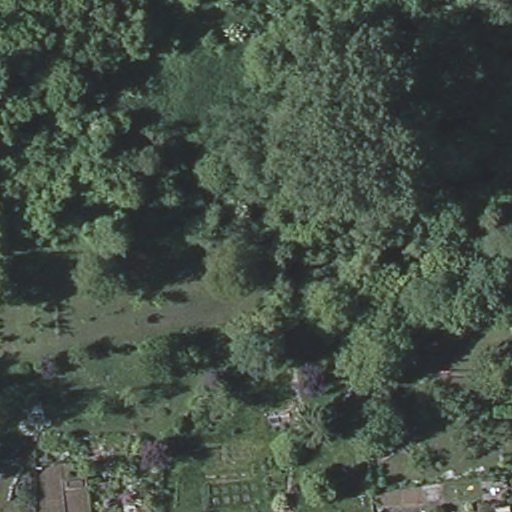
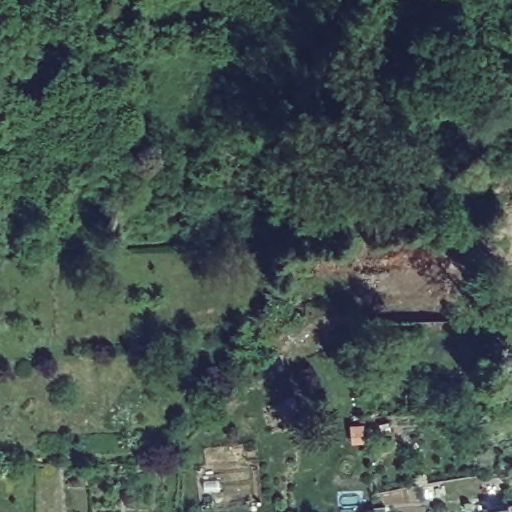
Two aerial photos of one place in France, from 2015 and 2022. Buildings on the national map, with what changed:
unchanged [(488,509),(510,507),(512,507),(512,512),(488,512),(488,509)]

